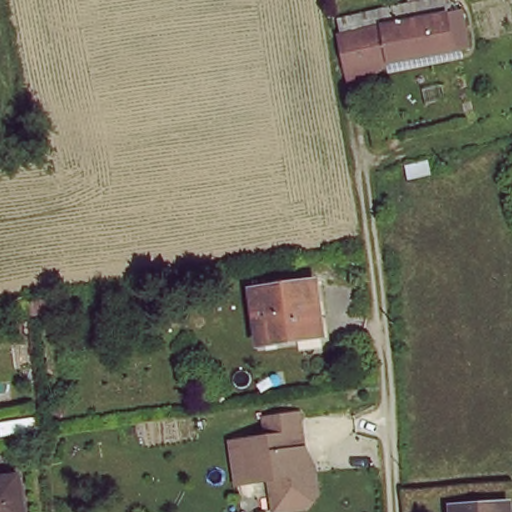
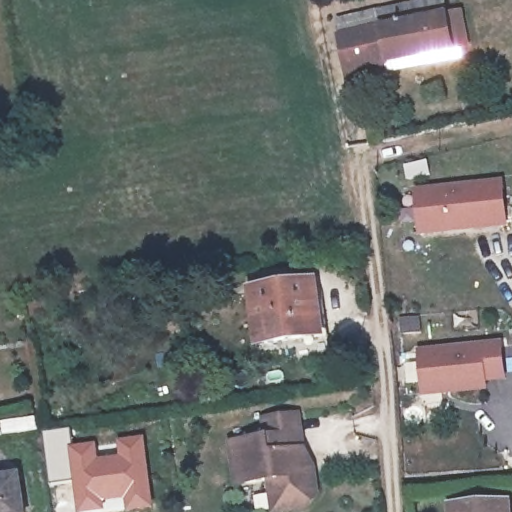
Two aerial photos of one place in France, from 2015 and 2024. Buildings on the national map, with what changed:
unchanged [(380,24),(427,14),(430,23),(445,20),(446,23),(459,21),(467,53),(454,56),(349,78),(340,40),(381,32),(380,24)]
new [(498,182),(502,222),(416,231),(413,190),(498,182)]
unchanged [(330,337),(263,348),(255,293),(323,284),(330,337)]
new [(495,341),(498,374),(478,376),(479,385),(417,391),(413,349),(495,341)]
new [(36,416),(38,431),(0,437),(0,421),(36,416)]
unchanged [(317,477),(319,498),(306,512),(277,512),(274,484),(242,486),(236,444),(270,440),(271,422),(303,418),(304,458),(317,477)]
new [(119,456),(117,439),(144,435),(154,508),(115,512),(76,512),(67,463),(54,464),(55,471),(48,472),(43,432),(70,428),(72,445),(96,441),(99,458),(119,456)]
unchanged [(0,512),(0,485),(16,482),(20,512),(0,512)]
unchanged [(454,512),(454,511),(511,502),(512,512),(454,512)]

